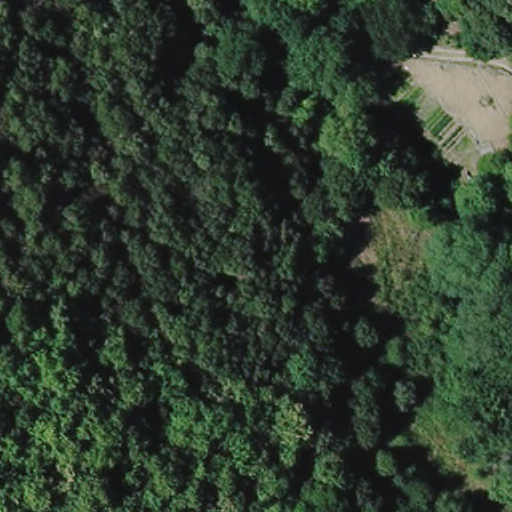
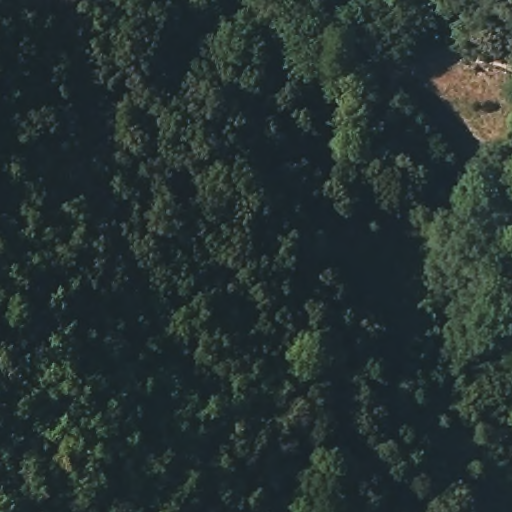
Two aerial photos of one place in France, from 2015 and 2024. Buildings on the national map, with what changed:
unchanged [(347,478),(328,481),(323,448),(341,445),(347,478)]

